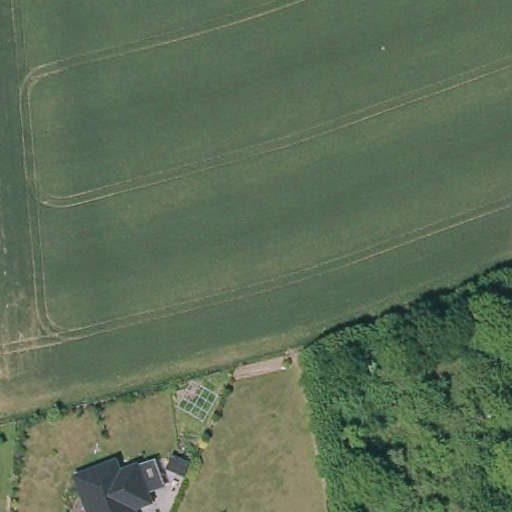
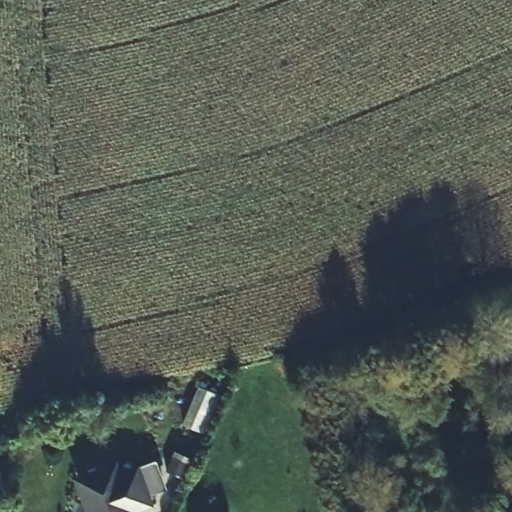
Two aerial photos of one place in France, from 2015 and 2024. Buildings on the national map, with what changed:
unchanged [(155,506),(138,512),(139,512),(85,512),(72,477),(120,459),(123,469),(140,464),(155,506)]

